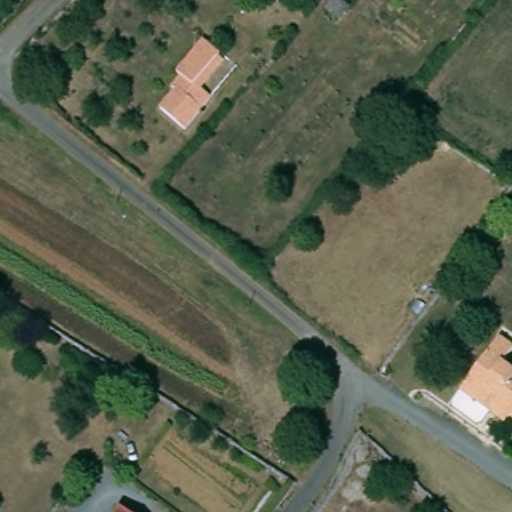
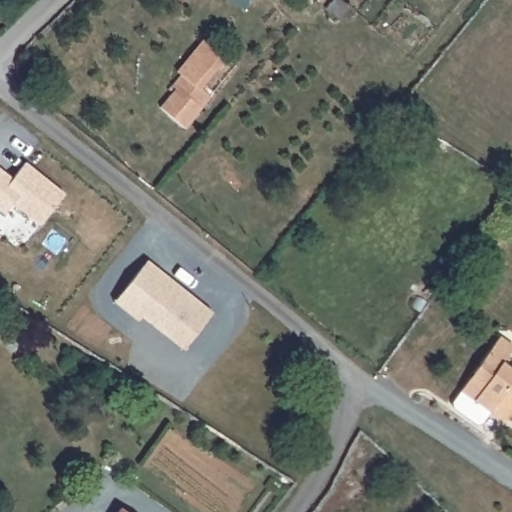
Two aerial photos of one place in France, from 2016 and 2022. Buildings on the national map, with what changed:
unchanged [(180,65),(183,61),(207,35),(212,40),(212,39),(217,43),(225,50),(201,78),(216,93),(190,126),(164,104),(174,92),(181,84),(177,80),(185,70),(180,65)]
new [(11,186),(23,170),(62,200),(38,232),(3,205),(0,209),(0,178),(11,186)]
new [(114,302),(148,260),(213,312),(184,351),(140,317),(137,321),(114,302)]
unchanged [(512,351),(503,362),(512,368),(512,412),(507,420),(461,390),(500,334),(512,342),(512,351)]
unchanged [(119,505),(129,512),(114,512),(119,505)]

